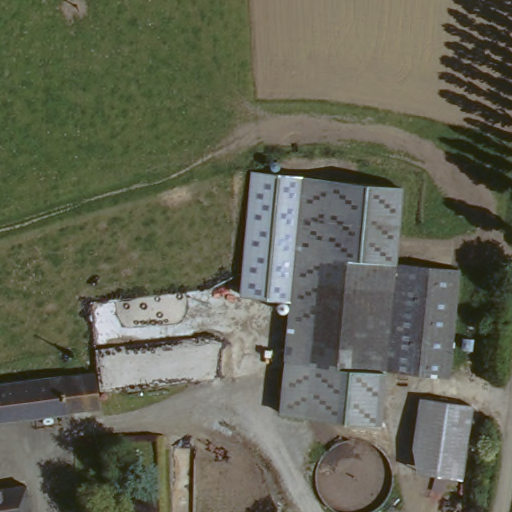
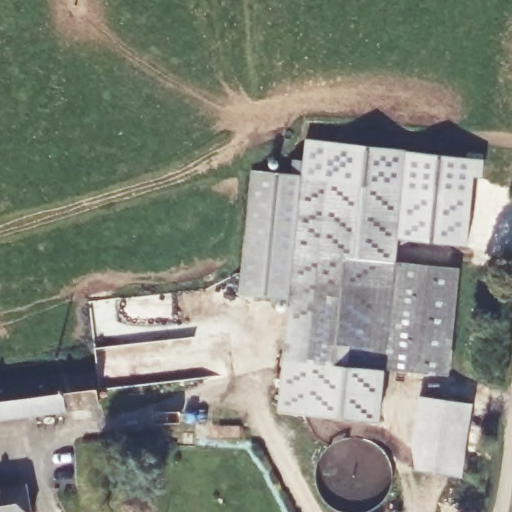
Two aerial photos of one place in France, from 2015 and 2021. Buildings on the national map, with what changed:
new [(306,140),(407,150),(406,152),(468,157),(468,152),(484,155),(482,179),(473,177),(467,246),(402,239),(408,185),(304,180),(306,140)]
unchanged [(293,302),(292,313),(276,312),(277,300),(239,295),(251,175),(304,180),(293,302)]
unchanged [(388,371),(288,362),(304,180),(408,185),(400,265),(466,270),(456,377),(388,371)]
unchanged [(388,371),(383,423),(277,413),(282,361),(288,362),(388,371)]
unchanged [(97,374),(102,402),(0,419),(0,388),(97,374)]
unchanged [(420,396),(474,402),(467,476),(411,470),(420,396)]
demolished [(300,420),(321,492),(284,502),(261,432),(300,420)]
unchanged [(32,484),(37,512),(0,512),(0,489),(32,484)]

